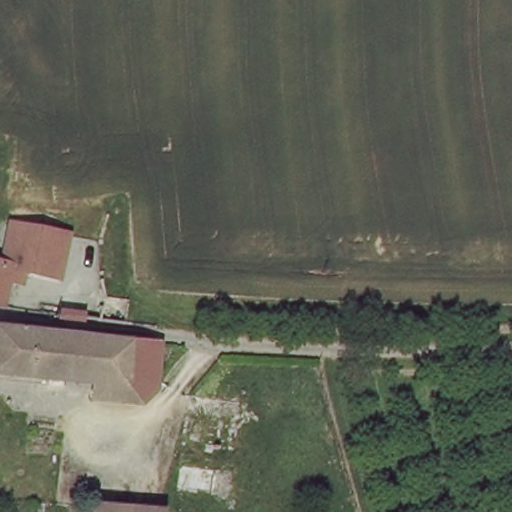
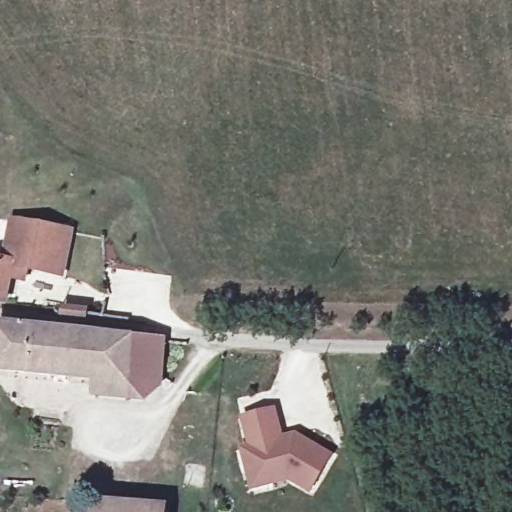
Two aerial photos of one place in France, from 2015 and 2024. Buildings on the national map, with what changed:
unchanged [(0,306),(0,258),(2,258),(10,218),(74,231),(65,279),(31,273),(27,285),(12,283),(7,307),(0,306)]
unchanged [(59,328),(62,308),(88,310),(87,331),(138,337),(167,340),(163,389),(147,405),(93,400),(94,384),(0,375),(0,322),(59,328)]
new [(311,493),(292,482),(252,491),(241,447),(249,444),(242,417),(278,408),(284,435),(297,432),(334,454),(311,493)]
unchanged [(96,503),(160,508),(160,512),(95,512),(96,503)]

